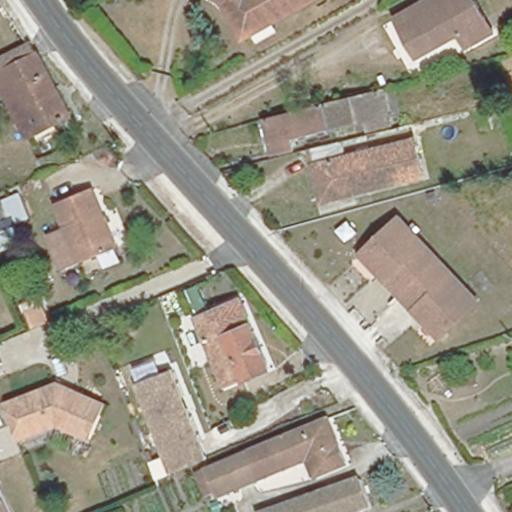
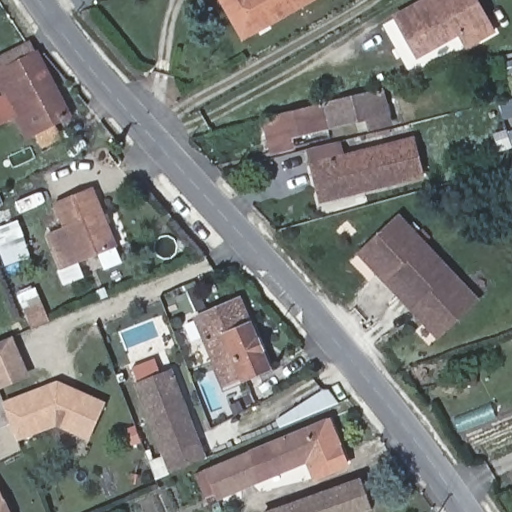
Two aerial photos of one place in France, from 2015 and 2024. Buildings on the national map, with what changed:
unchanged [(215,0),(315,0),(244,40),(239,43),(229,25),(215,0)]
unchanged [(474,0),(489,26),(463,41),(456,29),(414,52),(392,13),(414,0),(474,0)]
unchanged [(33,60),(35,59),(65,120),(23,141),(0,96),(0,59),(25,46),(33,60)]
unchanged [(382,89),(391,122),(372,128),(369,117),(292,138),(295,148),(274,154),(265,119),(382,89)]
unchanged [(321,197),(309,149),(342,141),(346,156),(380,148),(377,133),(411,125),(414,139),(423,177),(351,194),(322,202),(321,197)]
unchanged [(49,234),(65,228),(55,203),(93,188),(117,247),(79,262),(63,269),(49,234)]
unchanged [(362,253),(402,218),(440,260),(400,296),(362,253)]
unchanged [(478,303),(438,339),(400,296),(440,260),(478,303)]
unchanged [(226,387),(197,318),(240,299),(270,369),(226,387)]
new [(13,337),(30,377),(0,389),(0,342),(13,337)]
demolished [(1,362),(0,362),(0,359),(1,362)]
unchanged [(172,369),(207,459),(171,474),(136,383),(172,369)]
unchanged [(52,384),(100,406),(85,440),(52,426),(13,440),(0,407),(0,405),(52,384)]
unchanged [(347,466),(316,479),(309,461),(220,498),(217,492),(208,496),(199,473),(328,419),(347,466)]
unchanged [(373,509),(363,512),(273,512),(362,479),(373,509)]
unchanged [(1,495),(9,512),(0,512),(0,492),(1,495)]

